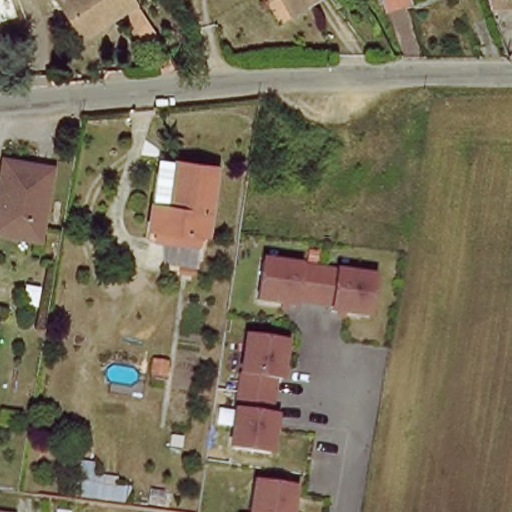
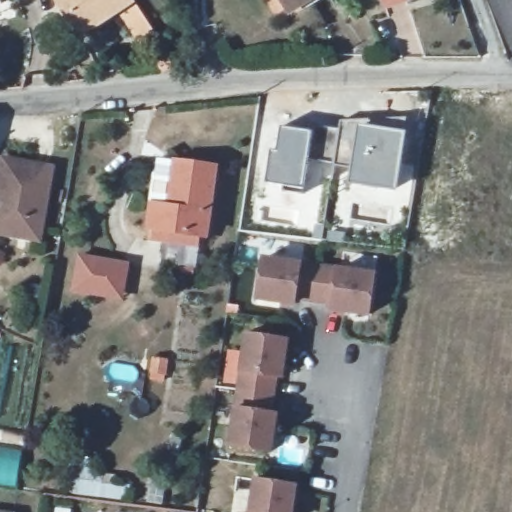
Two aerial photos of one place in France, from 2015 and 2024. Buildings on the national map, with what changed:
unchanged [(127,12),(85,37),(62,0),(139,0),(140,1),(141,3),(143,5),(163,37),(148,46),(127,12)]
unchanged [(295,12),(288,0),(315,0),(295,12)]
unchanged [(390,4),(390,0),(402,0),(390,4)]
demolished [(512,5),(492,6),(490,0),(512,0),(512,5)]
unchanged [(165,72),(163,63),(172,62),(173,71),(165,72)]
new [(315,130),(316,130),(317,126),(340,128),(340,118),(360,120),(407,127),(396,193),(347,185),(350,168),(335,165),(310,160),(304,191),(263,184),(270,147),(273,147),(279,126),(315,130)]
unchanged [(153,235),(165,154),(222,162),(211,242),(153,235)]
unchanged [(5,160),(52,169),(40,240),(0,233),(0,188),(5,160)]
new [(132,263),(126,302),(70,293),(77,254),(132,263)]
unchanged [(376,275),(370,315),(333,310),(333,304),(297,299),(296,305),(258,299),(265,259),(376,275)]
unchanged [(271,413),(277,414),(271,452),(231,445),(248,334),(288,340),(282,377),(277,376),(271,413)]
unchanged [(166,375),(165,384),(150,383),(151,373),(152,359),(170,360),(168,375),(166,375)]
new [(23,450),(19,482),(0,479),(0,447),(23,450)]
unchanged [(102,480),(103,474),(118,476),(118,483),(132,486),(129,502),(72,494),(76,466),(96,469),(95,479),(102,480)]
unchanged [(297,485),(293,512),(252,512),(257,480),(297,485)]

